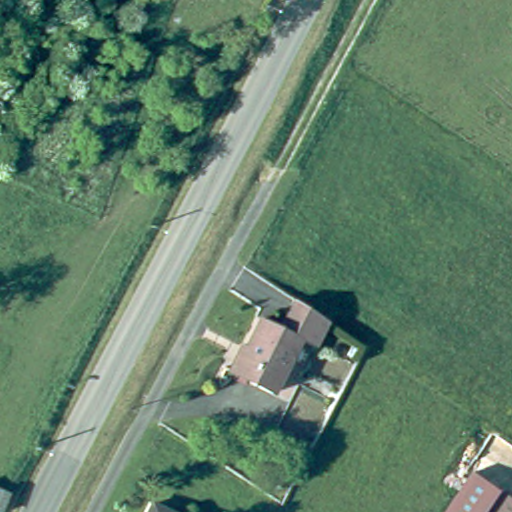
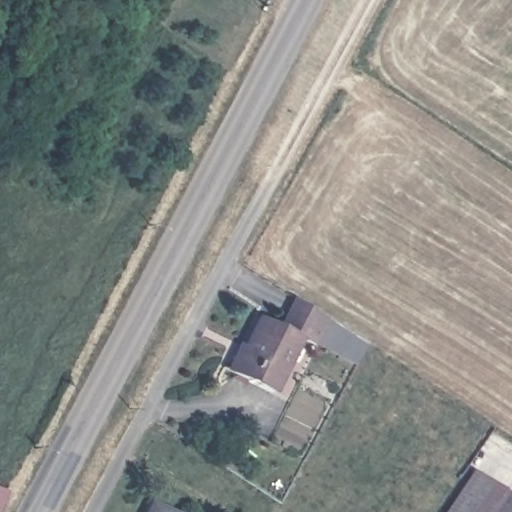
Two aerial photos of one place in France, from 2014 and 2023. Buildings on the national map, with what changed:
unchanged [(283,326),(300,300),(334,325),(317,350),(300,339),(283,326)]
unchanged [(266,389),(229,362),(264,314),(283,326),(300,339),(266,389)]
unchanged [(477,465),(512,490),(512,512),(443,512),(477,465)]
unchanged [(0,509),(0,483),(13,488),(2,510),(0,509)]
unchanged [(171,512),(150,512),(157,502),(171,512)]

